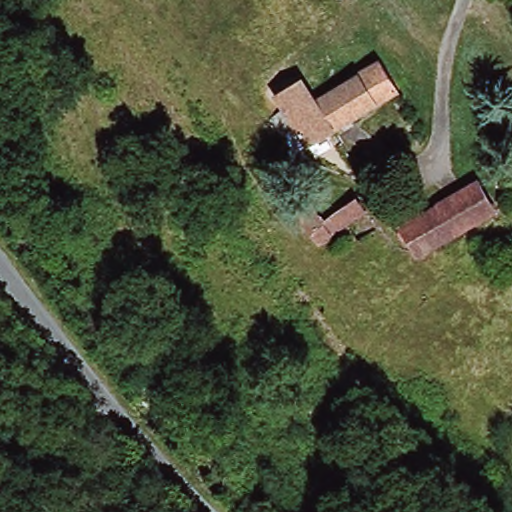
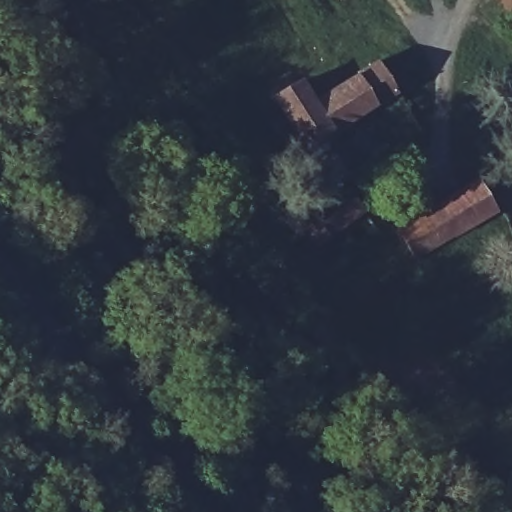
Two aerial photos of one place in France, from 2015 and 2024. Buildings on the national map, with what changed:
unchanged [(342,2),(341,0),(345,0),(342,2)]
unchanged [(295,105),(289,95),(308,83),(320,97),(367,68),(388,54),(407,89),(386,101),(319,143),(309,128),(291,140),(276,117),(295,105)]
unchanged [(475,182),(493,211),(415,256),(397,227),(475,182)]
unchanged [(293,219),(307,209),(320,227),(327,221),(354,202),(363,216),(337,235),(315,251),(293,219)]

